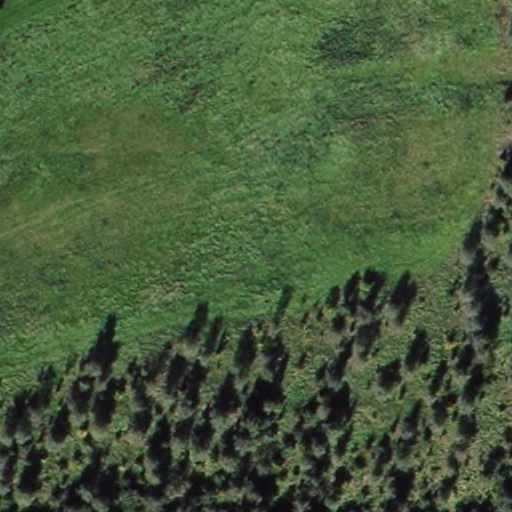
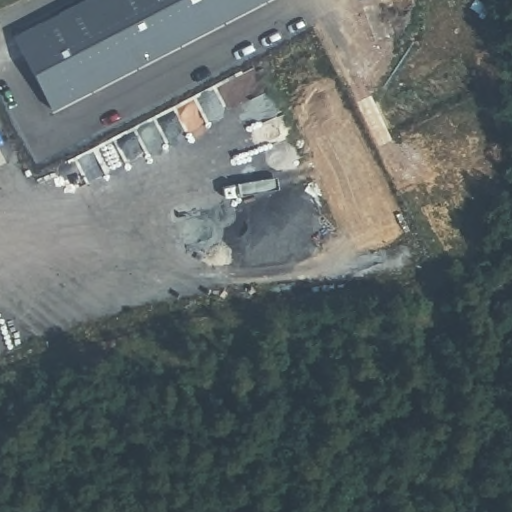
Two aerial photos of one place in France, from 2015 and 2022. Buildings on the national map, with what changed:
new [(262,0),(53,108),(16,36),(87,0),(262,0)]

